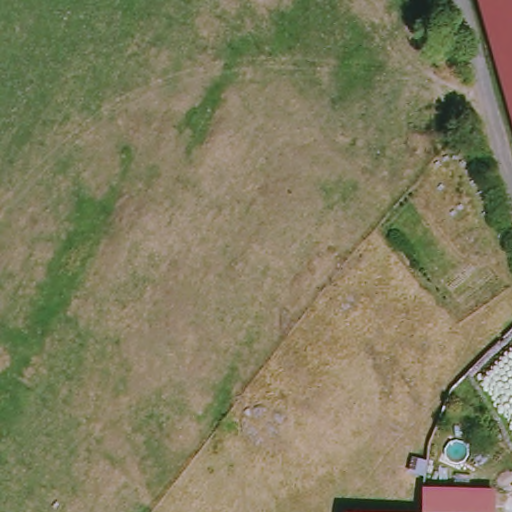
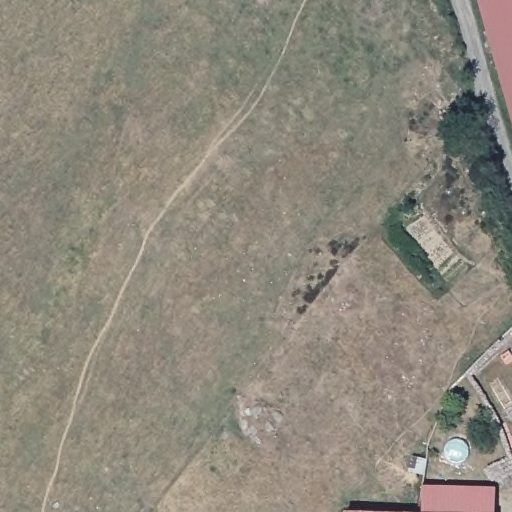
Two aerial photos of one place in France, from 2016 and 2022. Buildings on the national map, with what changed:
unchanged [(477,0),(512,0),(512,144),(477,0)]
unchanged [(505,488),(505,512),(422,512),(422,485),(505,488)]
unchanged [(359,512),(345,512),(345,511),(359,512)]

